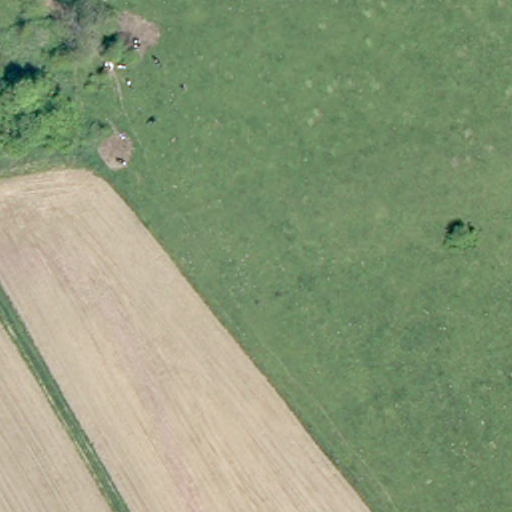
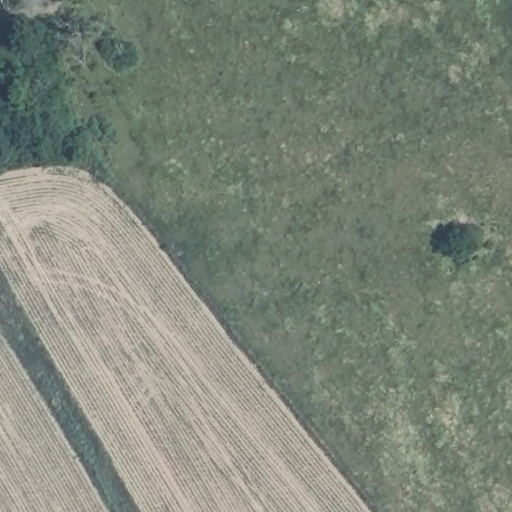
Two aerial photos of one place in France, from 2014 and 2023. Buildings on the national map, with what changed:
[]

